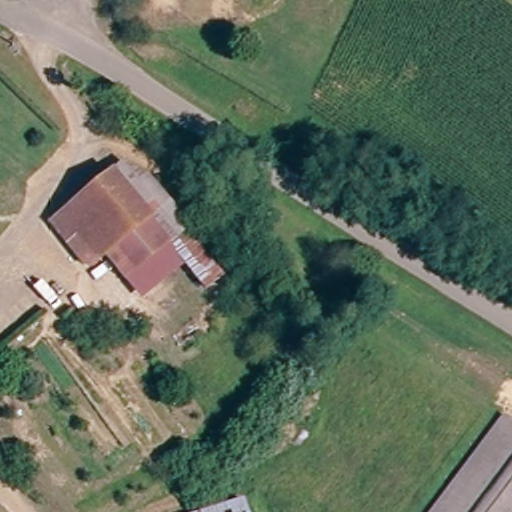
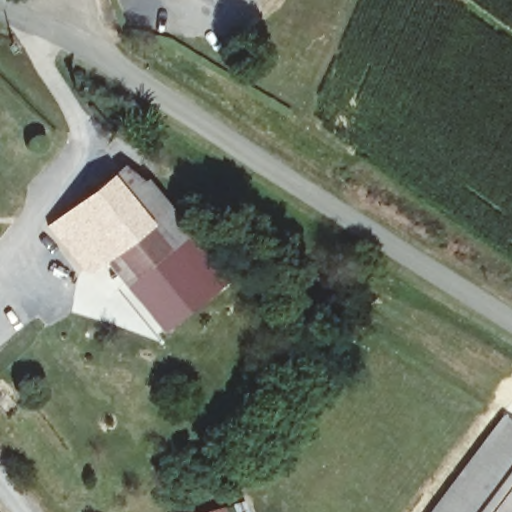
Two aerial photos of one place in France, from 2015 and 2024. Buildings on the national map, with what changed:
unchanged [(96,255),(80,269),(45,229),(117,165),(144,182),(147,178),(159,191),(199,232),(130,292),(96,255)]
new [(194,237),(228,276),(161,331),(130,292),(194,237)]
unchanged [(512,416),(512,512),(422,512),(505,410),(512,416)]
unchanged [(243,512),(220,512),(241,507),(243,512)]

